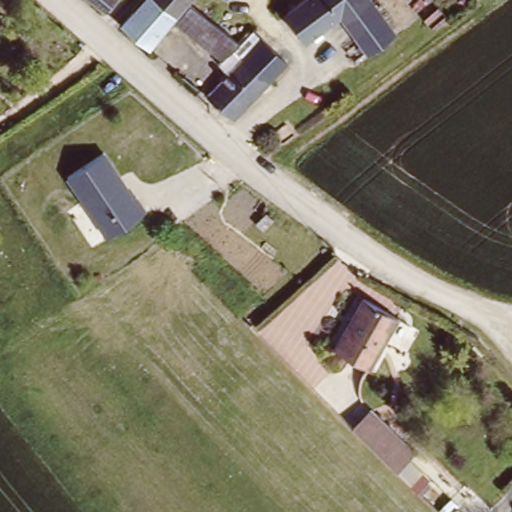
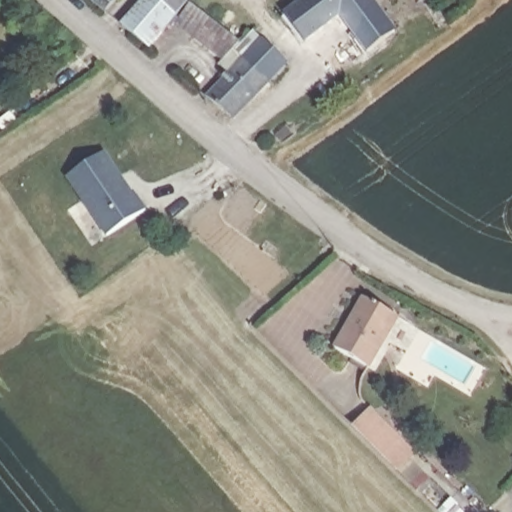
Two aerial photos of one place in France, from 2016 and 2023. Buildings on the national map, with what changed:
unchanged [(101,19),(79,0),(118,0),(101,19)]
unchanged [(176,17),(187,4),(223,35),(235,20),(249,32),(237,46),(232,52),(241,60),(267,84),(232,121),(206,93),(225,75),(218,67),(222,63),(177,26),(171,31),(168,28),(148,50),(121,27),(146,0),(157,0),(176,17)]
unchanged [(187,4),(176,17),(157,0),(191,0),(187,4)]
unchanged [(298,0),(372,0),(391,28),(362,48),(339,17),(303,39),(284,11),(298,0)]
unchanged [(262,39),(288,64),(267,84),(241,60),(262,39)]
unchanged [(68,177),(108,150),(147,208),(110,233),(68,177)]
unchanged [(365,291),(401,314),(361,376),(329,349),(330,347),(365,291)]
unchanged [(353,429),(370,411),(416,454),(398,473),(353,429)]
unchanged [(452,496),(468,512),(441,512),(440,511),(452,496)]

